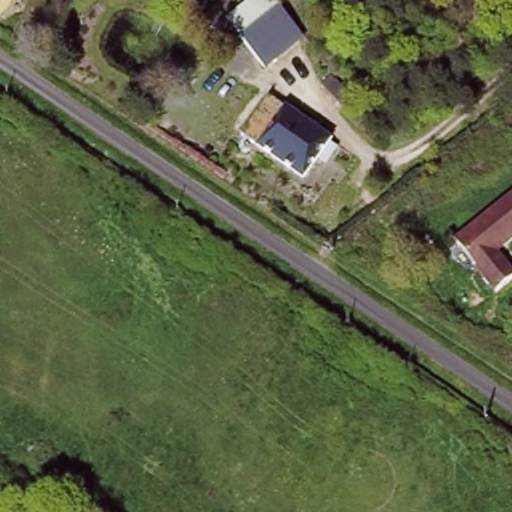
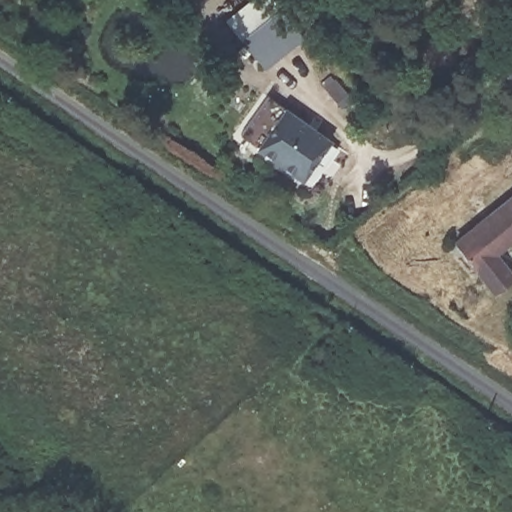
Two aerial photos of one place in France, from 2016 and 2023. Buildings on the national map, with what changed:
unchanged [(266,69),(226,18),(250,0),(275,0),(304,37),(266,69)]
unchanged [(332,140),(308,178),(251,139),(274,102),(332,140)]
unchanged [(512,190),(512,235),(494,250),(512,273),(512,277),(496,290),(477,265),(455,238),(512,190)]

